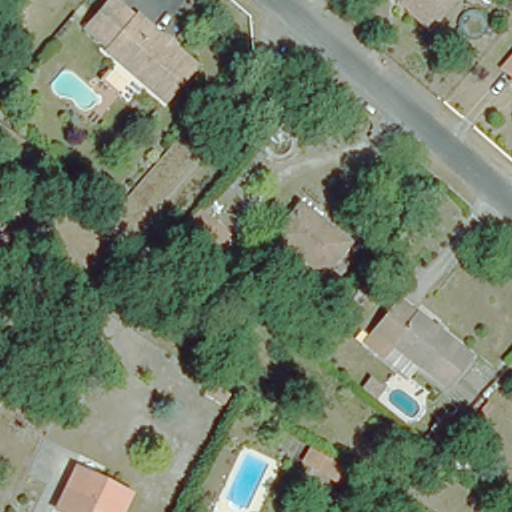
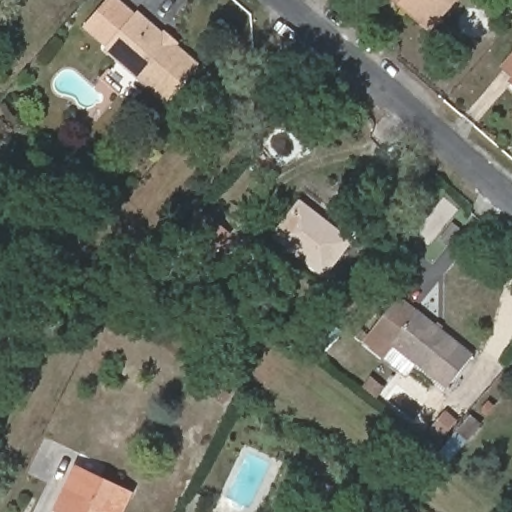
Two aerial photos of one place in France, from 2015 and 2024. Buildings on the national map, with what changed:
unchanged [(163,96),(140,76),(142,69),(131,60),(123,60),(88,31),(117,0),(130,0),(163,29),(166,26),(177,36),(173,41),(194,61),(163,96)]
unchanged [(429,33),(393,0),(461,0),(429,33)]
unchanged [(338,237),(314,267),(269,229),(293,200),(338,237)]
unchanged [(228,235),(208,257),(182,234),(203,211),(228,235)]
unchanged [(439,389),(390,345),(378,357),(358,338),(402,292),(472,352),(439,389)]
unchanged [(116,512),(80,512),(73,508),(71,512),(51,501),(71,464),(125,492),(116,512)]
unchanged [(351,487),(344,500),(335,495),(343,482),(351,487)]

